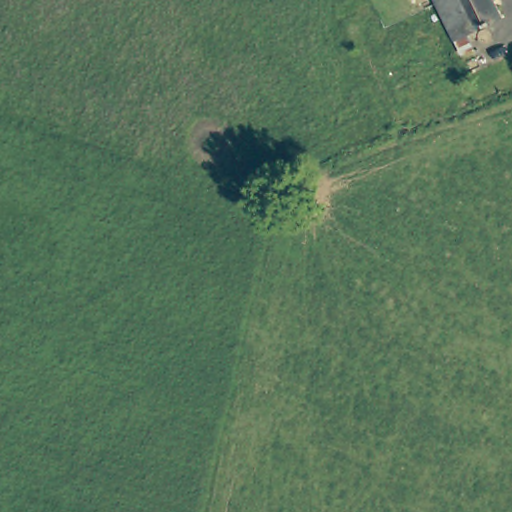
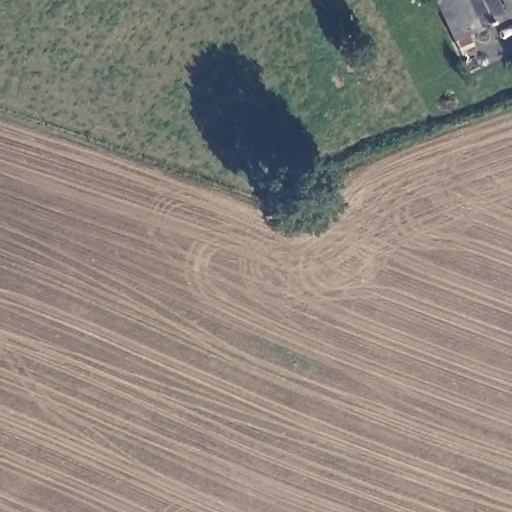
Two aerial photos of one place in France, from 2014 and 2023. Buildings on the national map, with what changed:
unchanged [(467,30),(471,43),(456,47),(439,0),(495,0),(501,17),(467,30)]

